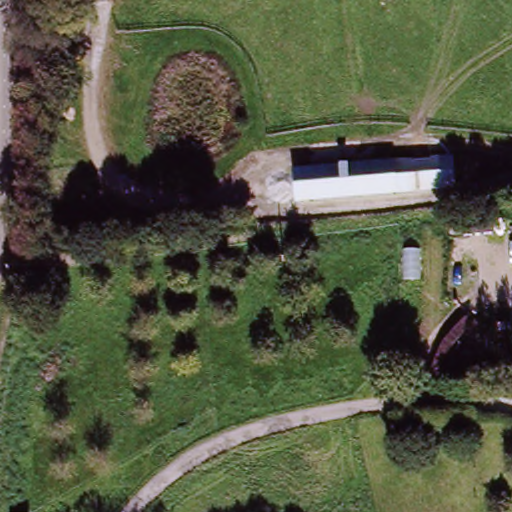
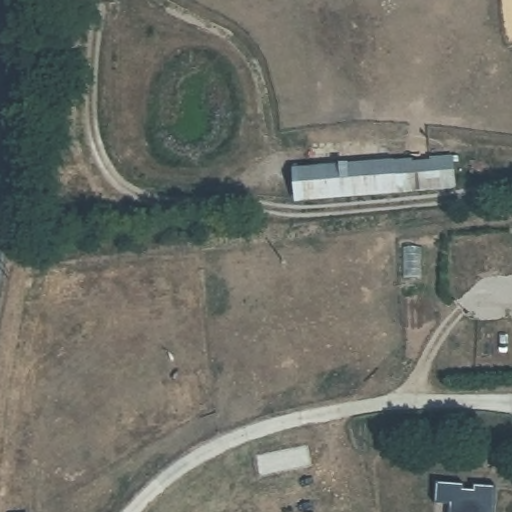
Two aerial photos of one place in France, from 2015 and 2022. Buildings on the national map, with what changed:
unchanged [(417,189),(416,159),(456,156),(457,186),(417,189)]
unchanged [(300,201),(298,168),(416,159),(417,189),(300,201)]
unchanged [(462,237),(461,217),(490,215),(491,234),(462,237)]
new [(464,484),(463,489),(473,489),(474,484),(497,486),(495,512),(450,512),(450,504),(435,504),(437,482),(464,484)]

